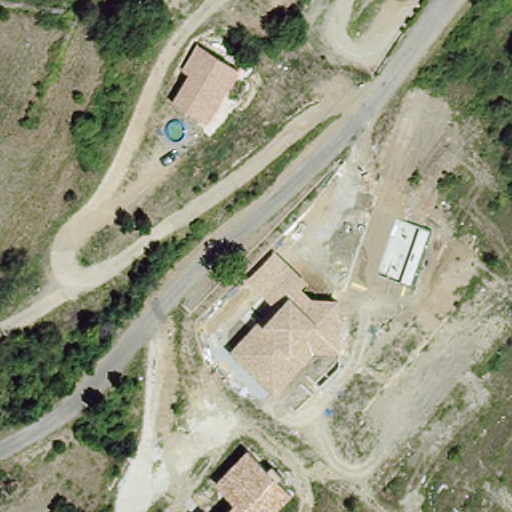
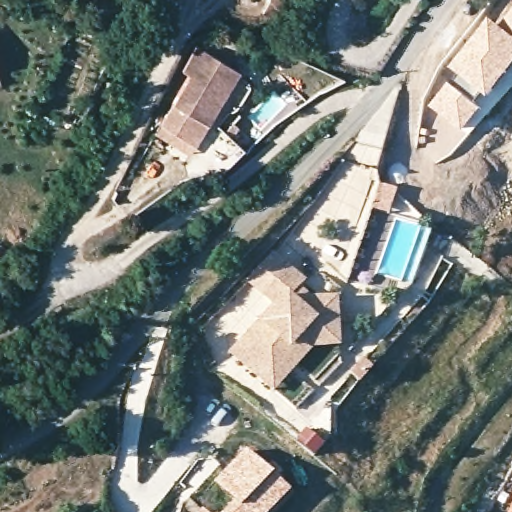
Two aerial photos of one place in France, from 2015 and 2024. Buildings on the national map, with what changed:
new [(512,10),(512,34),(500,25),(512,10)]
new [(490,18),(500,25),(512,34),(512,75),(490,102),(450,69),(490,18)]
unchanged [(173,102),(189,75),(182,71),(197,45),(239,70),(207,124),(173,102)]
new [(449,83),(483,112),(463,135),(429,107),(449,83)]
new [(207,124),(188,155),(155,134),(173,102),(207,124)]
unchanged [(230,354),(260,322),(263,325),(278,308),(247,281),(275,253),(308,282),(302,289),(313,298),(340,298),(342,350),(315,351),(275,395),(230,354)]
unchanged [(217,484),(248,452),(268,470),(272,467),(282,476),(277,479),(293,494),(275,512),(227,512),(235,503),(217,484)]
unchanged [(207,512),(203,512),(205,510),(207,512)]
new [(511,512),(512,511),(512,512),(511,512)]

